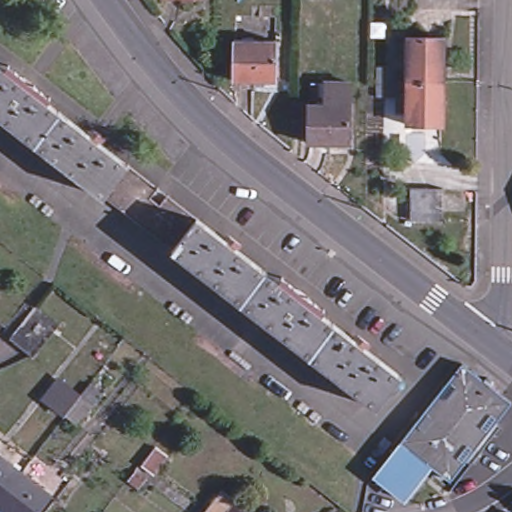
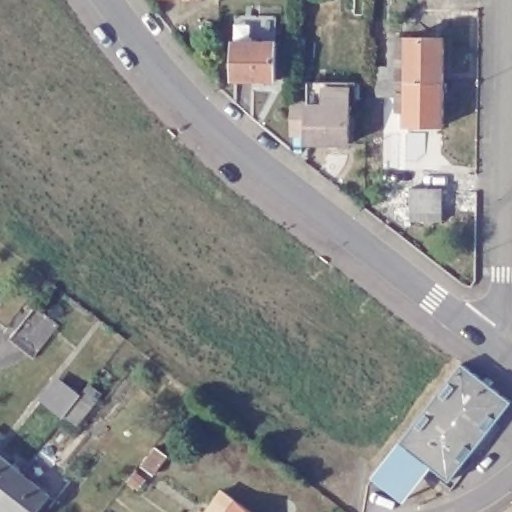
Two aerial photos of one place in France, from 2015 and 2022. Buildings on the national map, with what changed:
unchanged [(206,0),(205,2),(165,1),(166,0),(206,0)]
unchanged [(412,109),(401,109),(401,96),(382,95),(382,78),(395,78),(396,40),(413,40),(413,36),(450,36),(450,79),(450,124),(411,124),(412,109)]
unchanged [(237,40),(280,42),(278,82),(236,80),(237,40)]
demolished [(0,63),(5,67),(46,99),(60,110),(35,142),(0,114),(0,63)]
unchanged [(312,149),(312,141),(294,140),(295,108),(312,109),(312,86),(353,86),(353,109),(353,150),(312,149)]
demolished [(135,219),(118,207),(105,197),(35,142),(60,110),(130,164),(144,175),(160,188),(135,219)]
unchanged [(410,215),(410,190),(442,191),(441,216),(410,215)]
demolished [(241,304),(172,249),(158,239),(143,227),(168,195),(184,207),(198,218),(267,272),(241,304)]
demolished [(323,315),(336,325),(310,358),(241,304),(267,272),(280,282),(323,315)]
unchanged [(32,354),(15,342),(38,312),(55,324),(62,330),(40,359),(32,354)]
demolished [(402,378),(376,411),(310,358),(336,325),(402,378)]
unchanged [(383,485),(371,476),(374,471),(397,442),(436,393),(457,364),(507,404),(447,482),(428,467),(403,501),(383,485)]
unchanged [(78,392),(90,378),(106,389),(80,424),(41,394),(55,374),(78,392)]
unchanged [(0,500),(0,450),(2,452),(24,469),(0,500)]
unchanged [(24,469),(52,491),(36,512),(15,512),(12,509),(10,512),(0,512),(0,508),(3,504),(0,500),(24,469)]
unchanged [(229,504),(216,494),(223,485),(258,512),(223,512),(229,504)]

